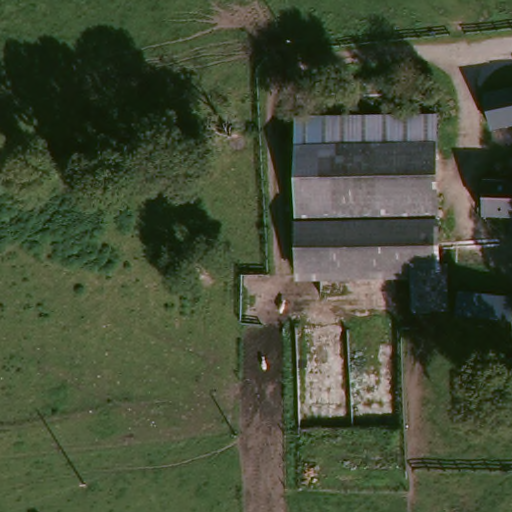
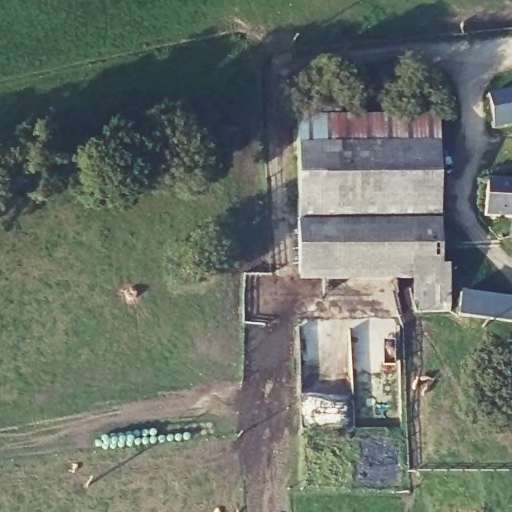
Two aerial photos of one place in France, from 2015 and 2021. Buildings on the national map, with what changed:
unchanged [(489,130),(486,99),(486,88),(512,84),(512,126),(489,130)]
unchanged [(293,127),(430,117),(438,200),(298,211),(293,127)]
unchanged [(484,177),(512,178),(512,214),(483,212),(484,177)]
unchanged [(439,221),(301,233),(298,211),(438,200),(439,221)]
unchanged [(443,271),(421,273),(305,284),(301,233),(439,221),(443,271)]
unchanged [(449,270),(453,307),(425,311),(421,273),(443,271),(449,270)]
unchanged [(465,309),(471,285),(512,292),(512,316),(465,309)]

